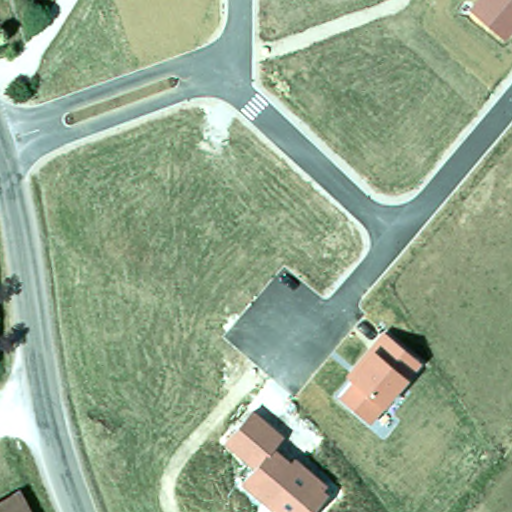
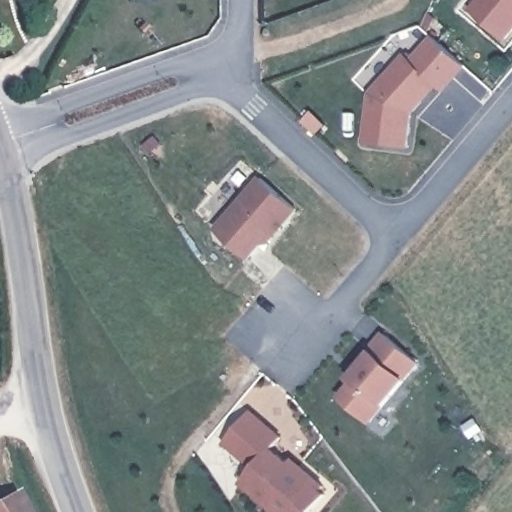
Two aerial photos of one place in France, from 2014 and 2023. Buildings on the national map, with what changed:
unchanged [(473,7),(480,0),(512,0),(512,25),(502,35),(473,7)]
new [(467,67),(445,93),(437,87),(415,113),(410,148),(362,144),(368,95),(403,53),(410,59),(432,34),(467,67)]
new [(262,244),(249,259),(213,228),(259,175),(299,210),(269,245),(262,244)]
unchanged [(421,365),(370,426),(340,398),(351,384),(346,378),(386,332),(421,365)]
unchanged [(276,449),(292,462),(297,458),(328,485),(324,490),(329,494),(313,512),(275,512),(240,482),(252,467),(226,443),(255,409),(285,438),(276,449)]
unchanged [(15,489),(26,512),(0,512),(0,496),(15,489)]

